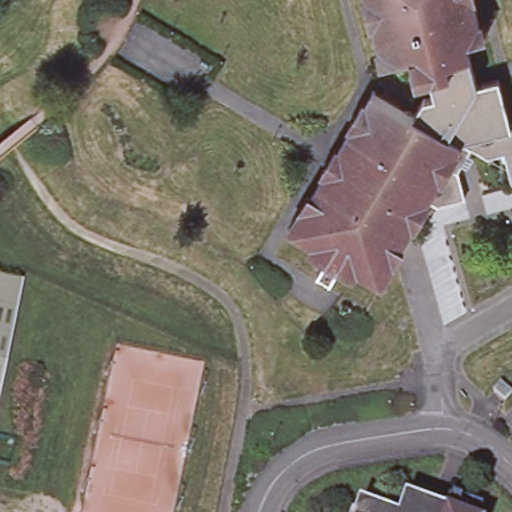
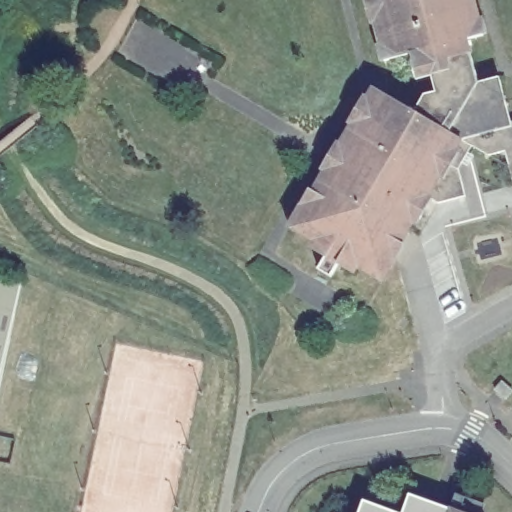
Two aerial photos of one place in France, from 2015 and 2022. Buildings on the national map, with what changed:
unchanged [(301,231),(295,226),(376,86),(417,110),(427,94),(438,91),(433,74),(420,77),(414,53),(407,55),(387,59),(385,50),(371,0),(476,0),(476,1),(480,16),(483,31),(467,35),(477,79),(498,74),(510,119),(512,118),(512,181),(511,181),(503,148),(487,152),(470,142),(455,165),(462,192),(435,199),(426,192),(382,277),(343,255),(335,271),(332,274),(322,268),(326,259),(332,247),(301,231)]
unchanged [(22,282),(0,393),(0,278),(22,282)]
unchanged [(512,392),(512,398),(508,402),(497,393),(503,385),(512,392)]
unchanged [(411,493),(463,512),(405,512),(411,493)]
unchanged [(365,500),(398,512),(361,512),(365,500)]

